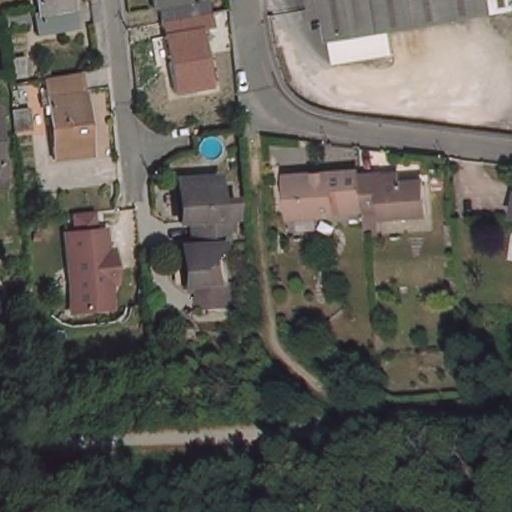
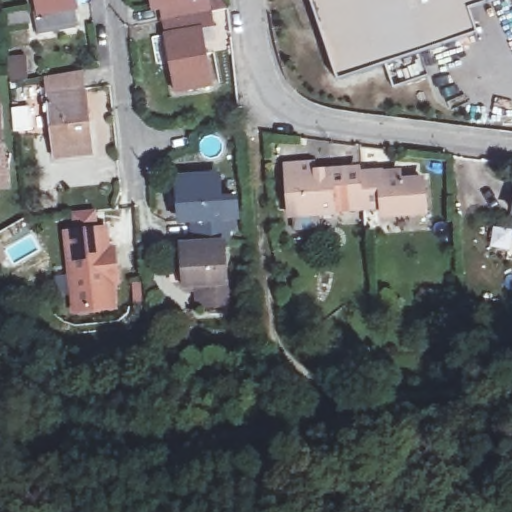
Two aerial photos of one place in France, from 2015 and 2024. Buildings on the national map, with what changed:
unchanged [(39,0),(73,0),(74,6),(70,7),(73,28),(35,36),(31,17),(40,8),(39,0)]
unchanged [(161,5),(154,5),(154,0),(209,0),(211,11),(163,19),(161,5)]
new [(466,8),(473,33),(330,77),(304,0),(486,0),(466,8)]
demolished [(458,17),(384,29),(389,54),(334,62),(330,37),(326,12),(309,14),(307,0),(455,0),(458,17)]
unchanged [(214,27),(201,29),(211,85),(176,90),(163,19),(211,11),(214,27)]
unchanged [(93,153),(56,157),(49,82),(82,78),(83,92),(86,92),(93,153)]
unchanged [(15,134),(13,110),(33,108),(35,132),(15,134)]
unchanged [(3,162),(8,162),(10,187),(0,187),(0,111),(3,162)]
unchanged [(371,208),(340,210),(340,212),(296,215),(293,174),(336,171),(337,176),(368,173),(371,208)]
unchanged [(368,173),(387,172),(388,182),(429,179),(431,212),(389,215),(388,206),(371,208),(368,173)]
unchanged [(236,230),(228,231),(229,242),(224,242),(225,285),(232,286),(233,309),(201,311),(199,294),(213,294),(213,287),(183,287),(182,249),(198,248),(197,230),(210,230),(210,221),(181,221),(179,181),(221,178),(222,199),(236,197),(238,218),(236,218),(236,230)]
unchanged [(384,238),(373,239),(371,214),(382,213),(384,238)]
unchanged [(106,227),(109,247),(115,247),(119,279),(113,280),(117,304),(77,310),(67,232),(106,227)]

